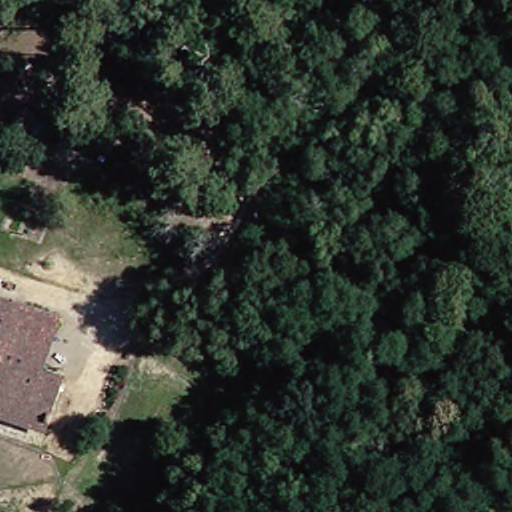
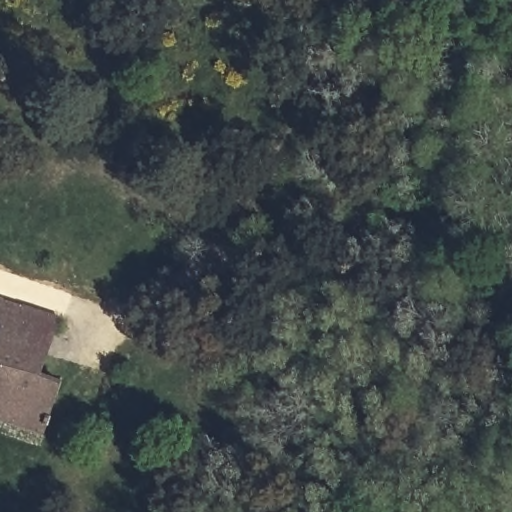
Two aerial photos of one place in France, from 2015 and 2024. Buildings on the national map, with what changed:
unchanged [(52,322),(37,374),(49,378),(42,403),(0,388),(0,307),(52,322)]
unchanged [(0,421),(0,388),(42,403),(34,433),(0,421)]

